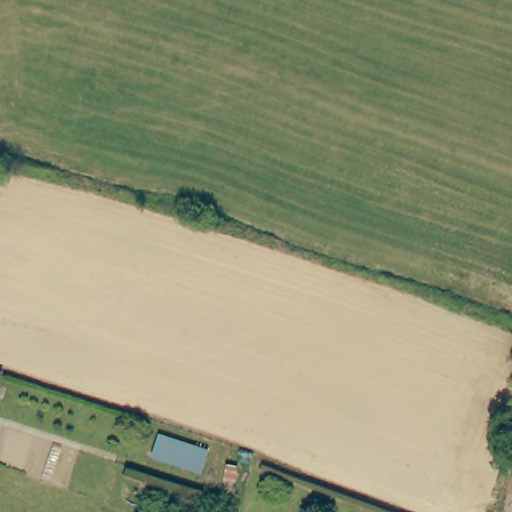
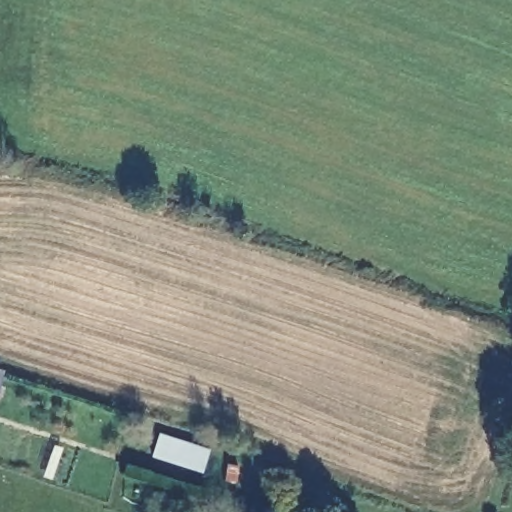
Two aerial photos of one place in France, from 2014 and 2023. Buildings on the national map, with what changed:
unchanged [(5,377),(0,388),(0,376),(5,377)]
unchanged [(204,477),(151,456),(158,433),(213,449),(204,477)]

